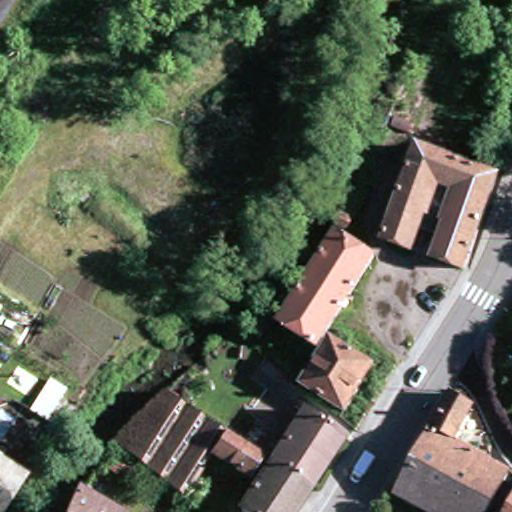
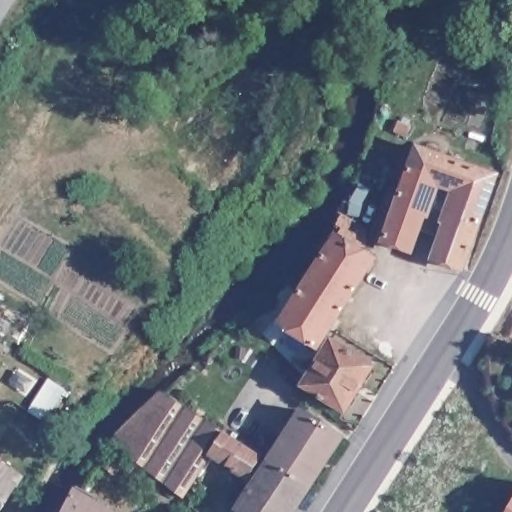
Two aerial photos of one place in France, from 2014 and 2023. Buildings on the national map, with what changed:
unchanged [(383,101),(397,107),(387,132),(374,127),(383,101)]
unchanged [(497,168),(465,271),(430,258),(449,192),(432,188),(413,252),(377,241),(412,142),(497,168)]
unchanged [(282,323),(339,233),(342,237),(346,233),(352,237),(350,239),(349,240),(374,257),(332,324),(331,326),(318,347),(282,323)]
unchanged [(279,319),(260,340),(247,327),(265,307),(279,319)]
unchanged [(346,411),(304,385),(332,339),(373,365),(346,411)]
unchanged [(511,388),(512,385),(512,389),(511,388)]
demolished [(504,466),(505,467),(481,512),(433,512),(392,491),(444,388),(463,398),(445,436),(485,456),(504,466)]
unchanged [(250,472),(247,476),(210,451),(181,497),(167,486),(111,442),(164,390),(271,460),(259,478),(250,472)]
unchanged [(46,393),(61,402),(47,425),(46,427),(31,417),(32,415),(46,393)]
unchanged [(271,460),(302,410),(342,435),(310,485),(271,460)]
unchanged [(293,512),(245,512),(239,508),(259,478),(271,460),(310,485),(293,512)]
unchanged [(0,511),(0,464),(22,478),(0,511)]
unchanged [(112,506),(110,512),(62,512),(75,487),(112,506)]
unchanged [(512,500),(512,512),(506,512),(511,502),(512,500)]

